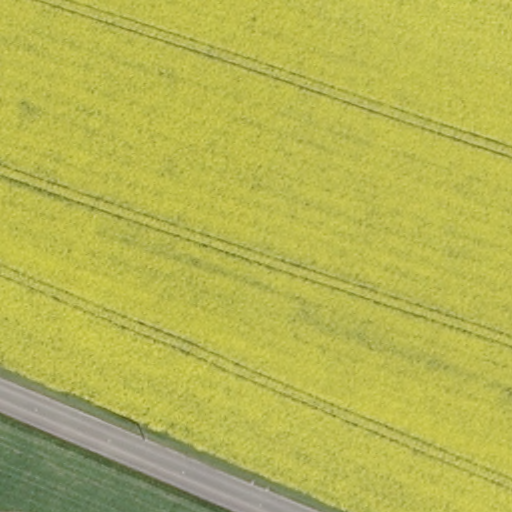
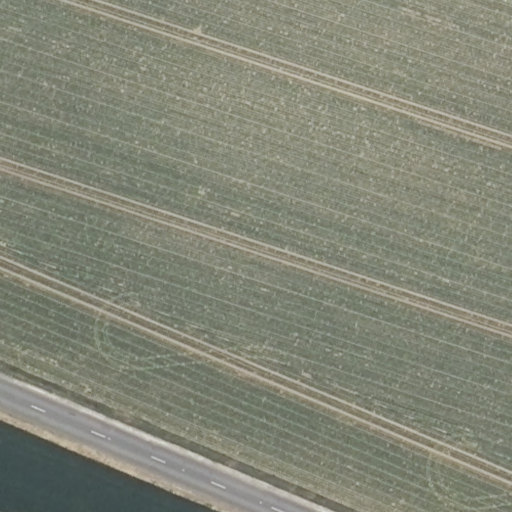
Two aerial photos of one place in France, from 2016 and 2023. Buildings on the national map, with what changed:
[]

